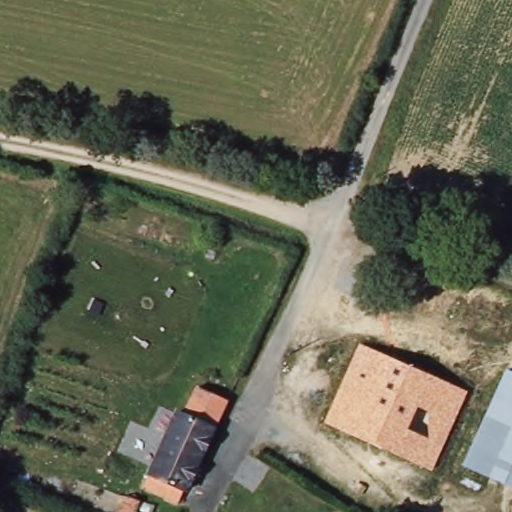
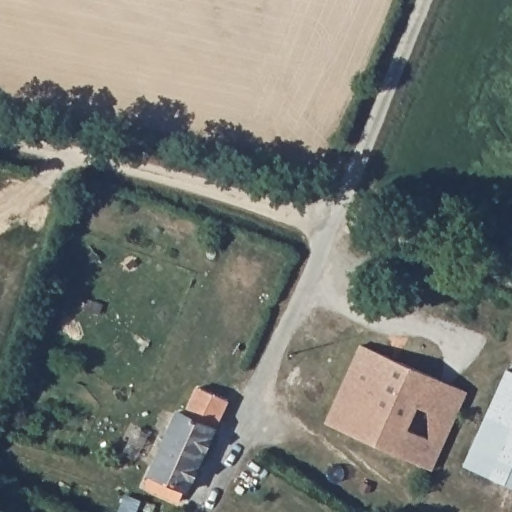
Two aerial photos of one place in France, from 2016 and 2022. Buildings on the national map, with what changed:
unchanged [(390,332),(451,359),(440,382),(380,355),(390,332)]
unchanged [(320,417),(343,363),(357,369),(366,349),(380,355),(440,382),(470,395),(434,474),(331,428),(333,424),(320,417)]
unchanged [(512,479),(508,488),(469,470),(512,375),(512,479)]
unchanged [(182,412),(189,415),(202,387),(232,400),(191,491),(188,489),(183,501),(148,485),(182,412)]
unchanged [(145,500),(141,512),(125,512),(130,495),(145,500)]

